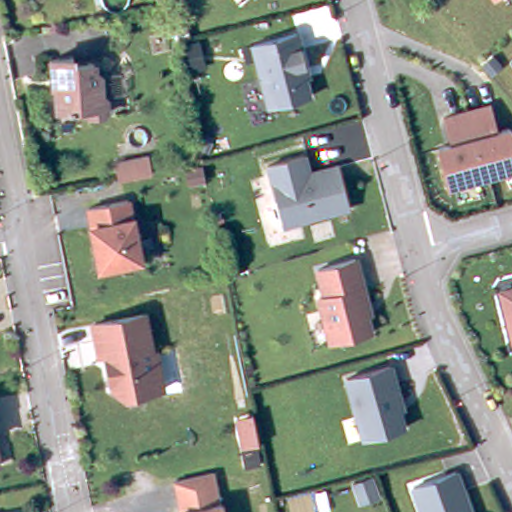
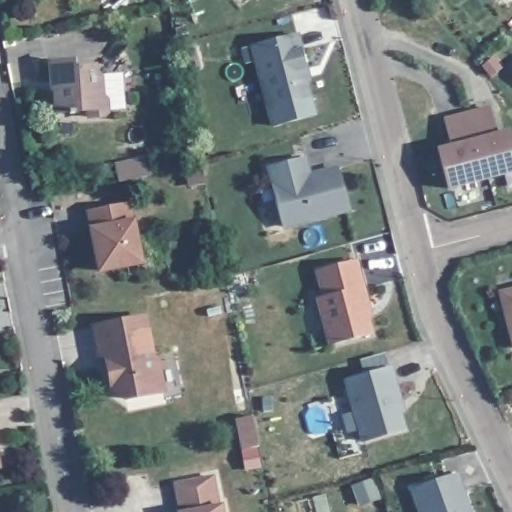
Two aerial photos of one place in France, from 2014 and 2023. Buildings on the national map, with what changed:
unchanged [(494,0),(492,2),(491,0),(494,0)]
unchanged [(299,32),(313,75),(308,76),(315,97),(267,109),(250,46),(299,32)]
unchanged [(206,68),(185,74),(177,48),(200,43),(206,68)]
unchanged [(77,59),(78,65),(99,63),(100,68),(105,73),(107,93),(111,96),(113,113),(95,114),(93,108),(78,109),(78,111),(74,112),(73,109),(62,108),(60,79),(57,78),(56,61),(77,59)]
unchanged [(438,149),(453,144),(443,118),(490,105),(497,133),(510,129),(512,132),(512,173),(449,190),(438,149)]
unchanged [(350,211),(282,228),(269,165),(306,155),(311,170),(337,165),(350,211)]
unchanged [(121,181),(117,163),(148,156),(151,175),(121,181)]
unchanged [(93,274),(81,228),(79,211),(128,202),(130,220),(139,265),(93,274)]
unchanged [(362,258),(377,310),(368,314),(375,333),(329,345),(316,299),(321,297),(315,270),(362,258)]
unchanged [(512,285),(512,340),(498,289),(512,285)]
unchanged [(97,362),(90,363),(85,323),(148,315),(165,392),(121,401),(110,392),(102,393),(97,362)]
unchanged [(393,366),(410,410),(404,412),(410,429),(365,443),(345,381),(393,366)]
unchanged [(235,421),(254,416),(260,444),(241,449),(235,421)]
unchanged [(1,467),(0,467),(0,460),(1,467)]
unchanged [(460,473),(475,512),(420,512),(412,489),(460,473)]
unchanged [(170,511),(176,509),(171,481),(213,474),(220,505),(222,512),(170,512),(170,511)]

